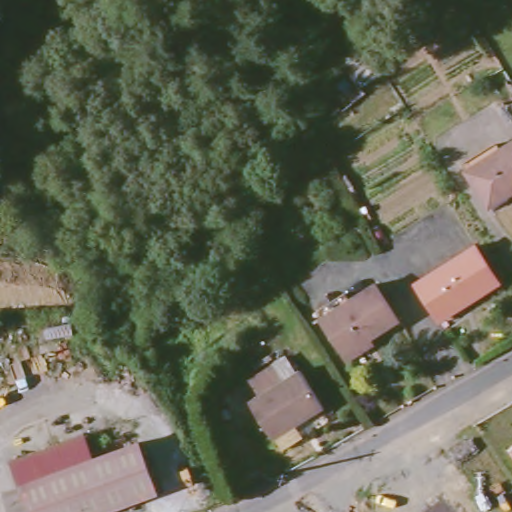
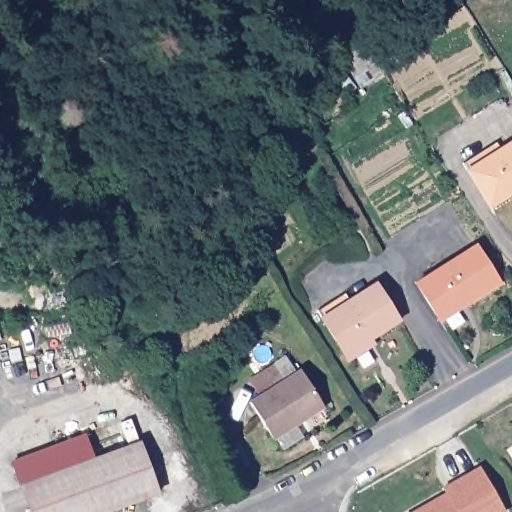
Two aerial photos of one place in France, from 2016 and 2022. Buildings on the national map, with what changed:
unchanged [(466,175),(512,144),(512,186),(485,204),(466,175)]
unchanged [(470,250),(494,286),(462,307),(458,302),(432,317),(411,287),(470,250)]
unchanged [(342,299),(347,307),(377,288),(399,323),(342,358),(317,315),(342,299)]
unchanged [(319,407),(267,437),(244,401),(255,394),(245,379),(282,358),(291,372),(297,369),(319,407)]
unchanged [(132,443),(152,495),(105,512),(25,512),(15,484),(132,443)]
unchanged [(512,446),(512,450),(510,448),(512,446)]
new [(442,487),(479,467),(505,512),(411,512),(445,493),(442,487)]

